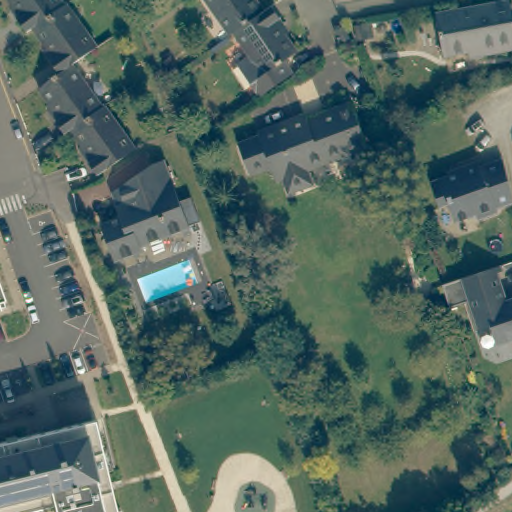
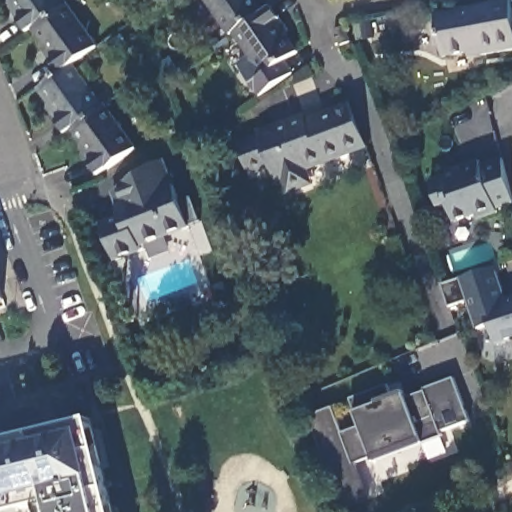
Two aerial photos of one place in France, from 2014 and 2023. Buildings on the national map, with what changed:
unchanged [(23,18),(12,0),(62,0),(66,6),(35,29),(28,34),(20,21),(23,18)]
unchanged [(256,0),(264,13),(234,33),(231,35),(206,0),(256,0)]
unchanged [(509,2),(512,17),(512,50),(479,56),(477,50),(442,56),(435,14),(509,2)]
unchanged [(52,62),(56,59),(35,29),(66,6),(69,4),(99,48),(74,65),(61,74),(52,62)]
unchanged [(280,19),(277,22),(296,51),(283,60),(293,74),(274,86),(260,96),(239,64),(251,56),(234,33),(264,13),(272,7),(280,19)]
unchanged [(342,44),(337,31),(336,28),(345,24),(347,28),(352,41),(342,44)]
unchanged [(170,58),(178,71),(165,80),(160,65),(170,58)]
unchanged [(58,123),(61,119),(40,89),(61,74),(74,65),(104,109),(72,130),(66,135),(58,123)]
unchanged [(363,142),(302,165),(305,175),(302,181),(290,187),(282,184),(278,174),(271,177),(266,164),(246,170),(235,140),(255,132),(253,128),(300,111),(302,119),(322,112),(320,107),(346,98),(363,142)]
unchanged [(90,164),(94,161),(72,130),(104,109),(107,106),(136,149),(128,155),(99,177),(90,164)]
unchanged [(102,221),(127,212),(123,203),(119,204),(114,189),(154,160),(163,157),(189,224),(140,243),(141,247),(116,258),(102,221)]
unchanged [(460,172),(459,168),(479,161),(481,166),(502,159),(506,175),(512,196),(512,203),(496,208),(497,212),(477,219),(476,214),(454,223),(448,204),(439,208),(430,183),(460,172)]
unchanged [(499,265),(501,270),(496,273),(502,290),(496,292),(499,303),(512,298),(512,340),(497,345),(490,325),(478,329),(468,301),(450,308),(442,285),(499,265)]
unchanged [(0,301),(0,289),(3,299),(0,301)]
new [(309,418),(332,409),(340,432),(361,426),(357,414),(349,398),(386,384),(390,397),(405,391),(408,397),(453,378),(469,422),(440,431),(442,437),(424,446),(375,464),(372,456),(355,464),(370,501),(344,512),(309,418)]
unchanged [(115,512),(39,512),(38,509),(26,512),(0,512),(0,442),(93,419),(115,512)]

